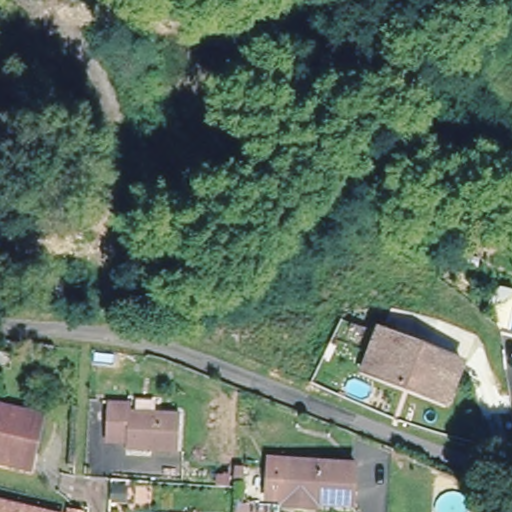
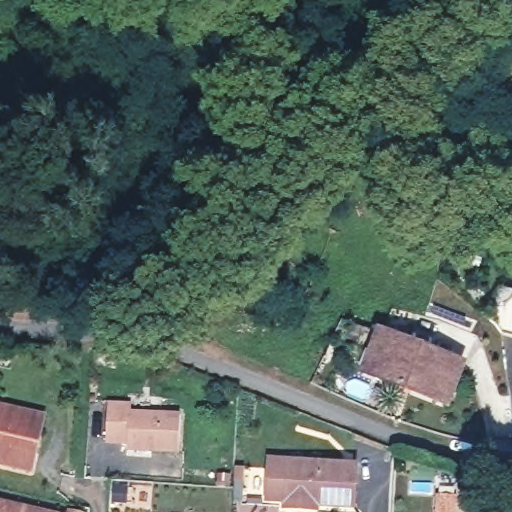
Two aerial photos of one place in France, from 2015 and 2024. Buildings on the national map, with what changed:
unchanged [(466,367),(450,407),(383,378),(368,372),(377,351),(384,333),(466,367)]
unchanged [(111,403),(130,404),(130,412),(179,415),(177,450),(130,447),(130,441),(108,440),(111,403)]
unchanged [(0,462),(0,406),(43,415),(35,451),(31,469),(8,464),(0,462)]
unchanged [(311,509),(287,508),(289,460),(356,464),(354,506),(319,504),(319,510),(311,509)]
unchanged [(0,512),(0,500),(51,512),(0,512)]

